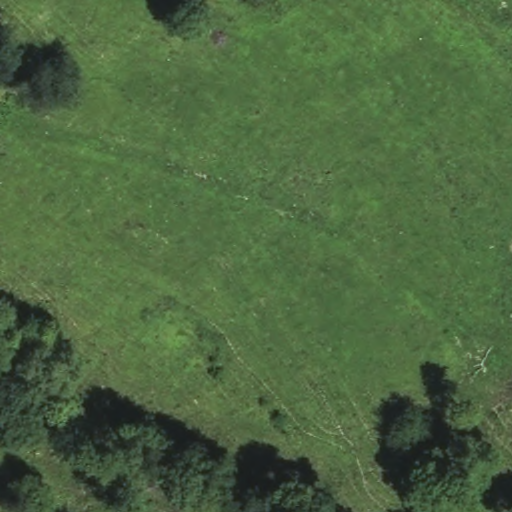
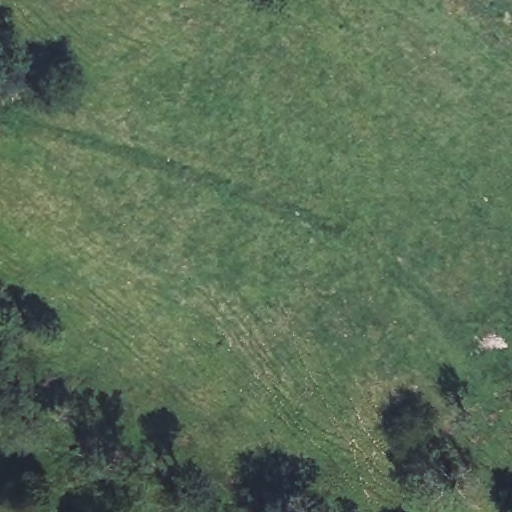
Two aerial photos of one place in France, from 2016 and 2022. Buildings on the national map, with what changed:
[]

